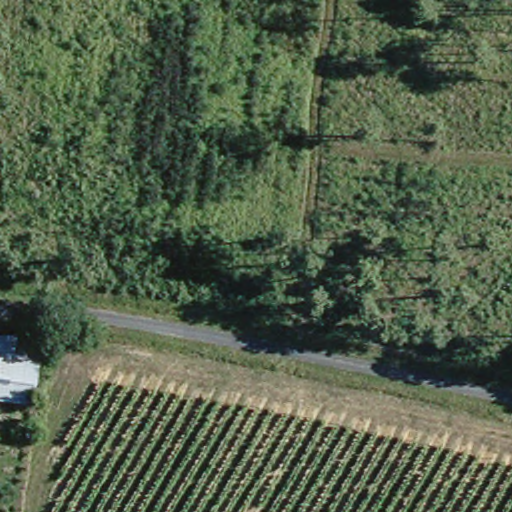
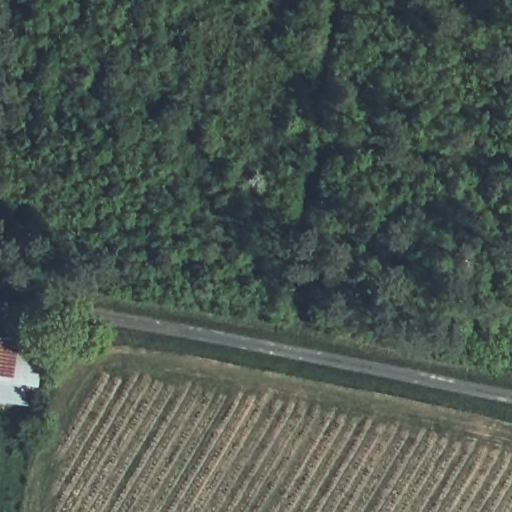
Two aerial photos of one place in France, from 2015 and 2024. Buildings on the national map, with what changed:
unchanged [(0,386),(0,338),(35,340),(30,388),(0,386)]

